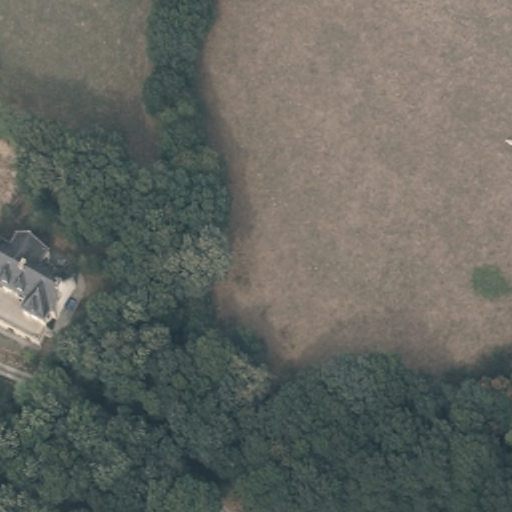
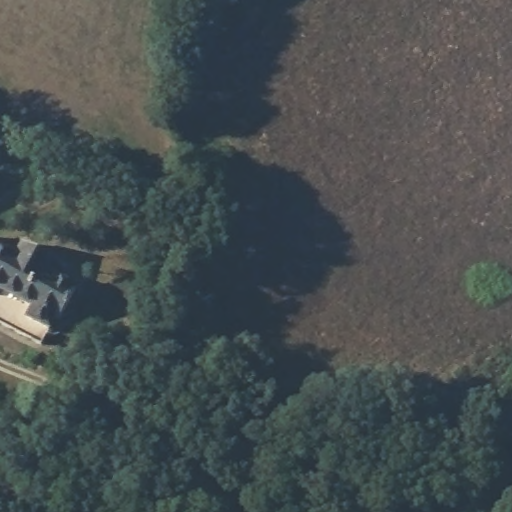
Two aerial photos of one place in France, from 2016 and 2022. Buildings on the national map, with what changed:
unchanged [(5,270),(12,259),(45,279),(40,285),(71,303),(49,341),(47,340),(40,352),(15,337),(20,329),(0,317),(0,266),(5,270)]

